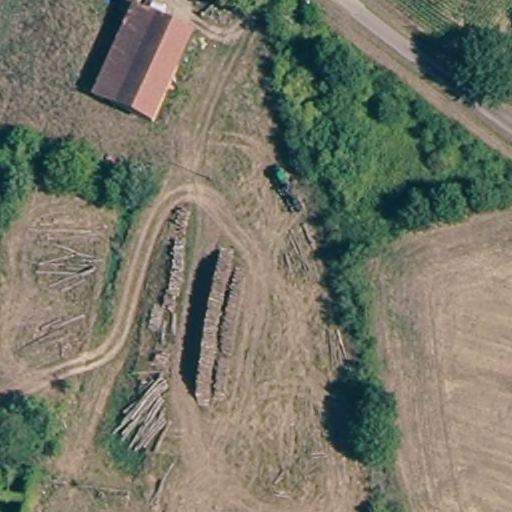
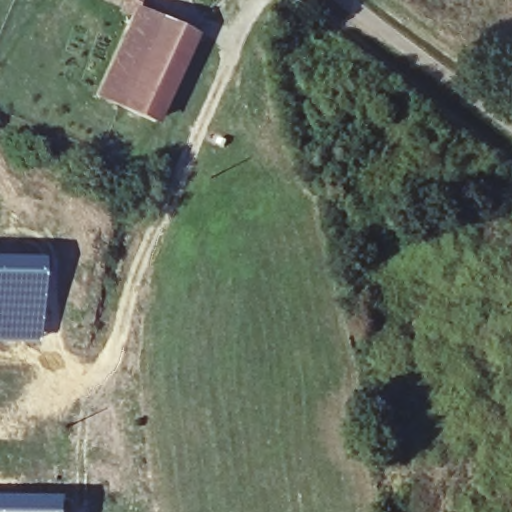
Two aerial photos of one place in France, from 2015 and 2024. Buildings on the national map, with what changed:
unchanged [(125,0),(126,0),(140,6),(142,7),(197,34),(157,124),(94,98),(130,16),(121,14),(125,0)]
unchanged [(140,6),(126,0),(145,0),(142,7),(140,6)]
demolished [(324,30),(341,31),(338,82),(322,81),(324,30)]
new [(39,257),(37,342),(0,341),(0,256),(39,257)]
new [(72,501),(72,512),(0,512),(0,499),(72,501)]

